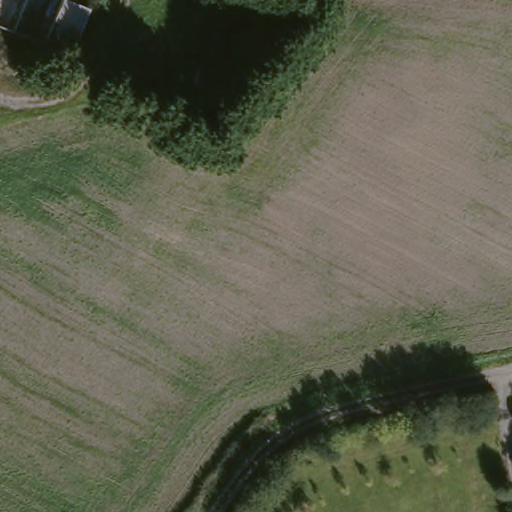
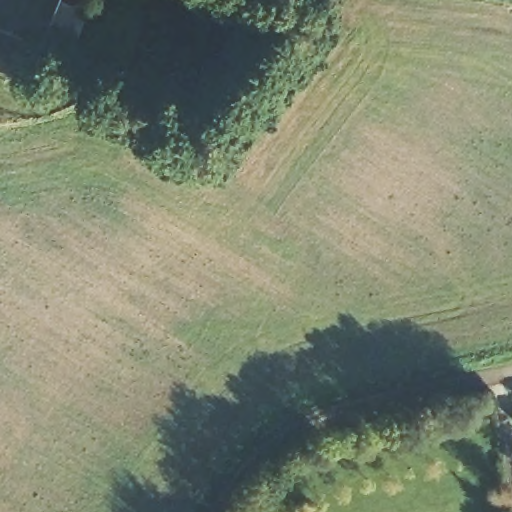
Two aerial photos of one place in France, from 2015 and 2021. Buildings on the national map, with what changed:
unchanged [(80,45),(55,36),(53,41),(0,20),(0,0),(83,0),(96,6),(80,45)]

